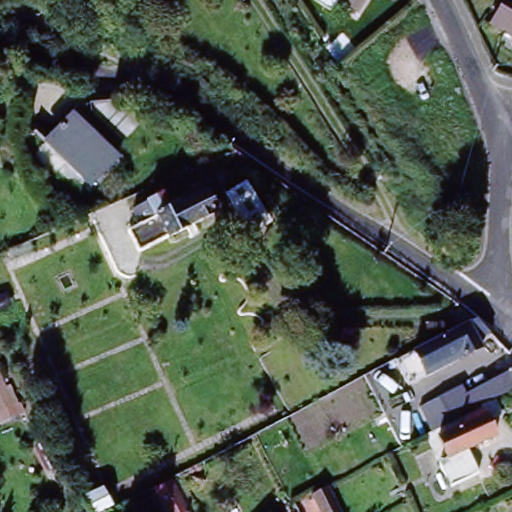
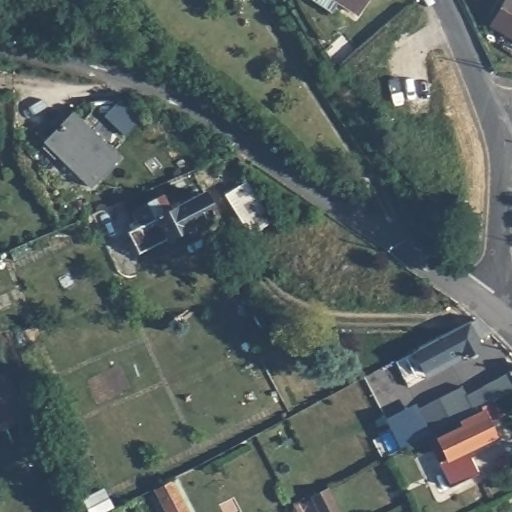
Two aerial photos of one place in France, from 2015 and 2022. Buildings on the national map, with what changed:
unchanged [(334,4),(331,8),(320,0),(340,0),(337,5),(334,4)]
unchanged [(357,9),(343,0),(363,0),(357,9)]
unchanged [(512,37),(492,25),(507,0),(512,0),(512,37)]
unchanged [(115,99),(117,104),(141,129),(125,145),(95,114),(92,104),(115,99)]
unchanged [(69,115),(114,161),(90,184),(57,151),(63,145),(50,132),(69,115)]
unchanged [(139,218),(168,203),(174,212),(184,207),(185,211),(210,200),(219,220),(147,258),(137,238),(145,232),(139,218)]
unchanged [(5,306),(0,309),(0,295),(5,306)]
unchanged [(473,350),(455,360),(452,355),(415,374),(404,353),(465,321),(466,320),(481,334),(468,341),(473,350)]
unchanged [(5,368),(15,409),(0,414),(0,369),(5,368)]
unchanged [(483,384),(512,368),(512,388),(490,399),(483,384)]
unchanged [(493,417),(480,424),(485,436),(457,451),(470,475),(442,489),(415,438),(428,431),(412,403),(432,392),(440,409),(450,404),(467,396),(474,407),(485,401),(493,417)]
unchanged [(187,512),(169,512),(156,487),(170,480),(187,512)]
unchanged [(344,512),(315,512),(307,496),(332,487),(344,512)]
unchanged [(97,490),(106,507),(96,512),(83,512),(77,501),(97,490)]

